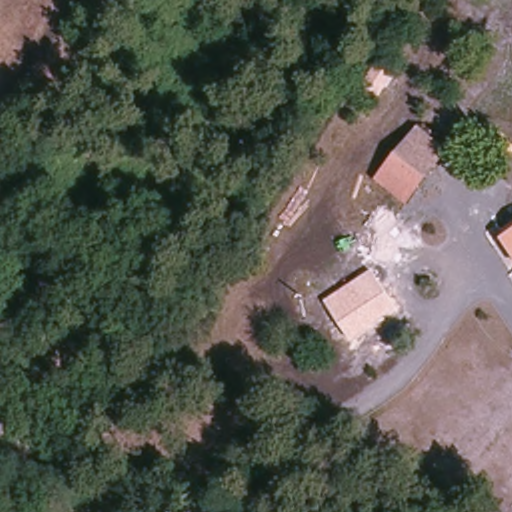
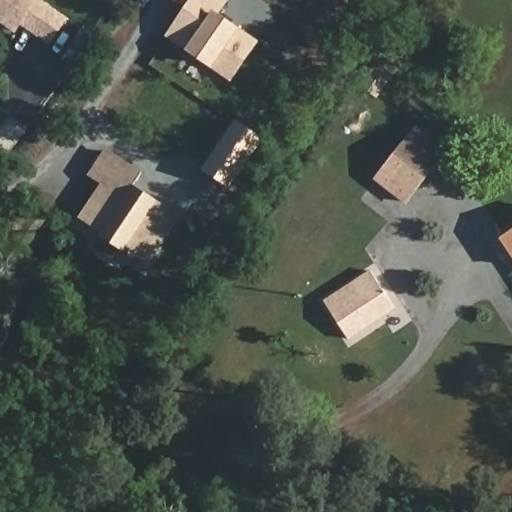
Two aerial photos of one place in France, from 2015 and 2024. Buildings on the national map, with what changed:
new [(0,22),(0,0),(42,0),(68,19),(50,46),(21,25),(15,31),(0,22)]
new [(220,15),(260,42),(231,83),(165,37),(185,8),(173,0),(230,0),(220,15)]
new [(236,120),(264,139),(231,189),(202,170),(236,120)]
unchanged [(404,197),(379,179),(415,131),(441,149),(404,197)]
new [(104,185),(92,175),(112,148),(146,174),(137,186),(180,218),(145,264),(100,230),(104,226),(86,212),(104,185)]
unchanged [(512,226),(512,261),(497,235),(512,226)]
unchanged [(372,272),(382,288),(392,282),(406,302),(345,338),(323,302),(362,278),(372,272)]

